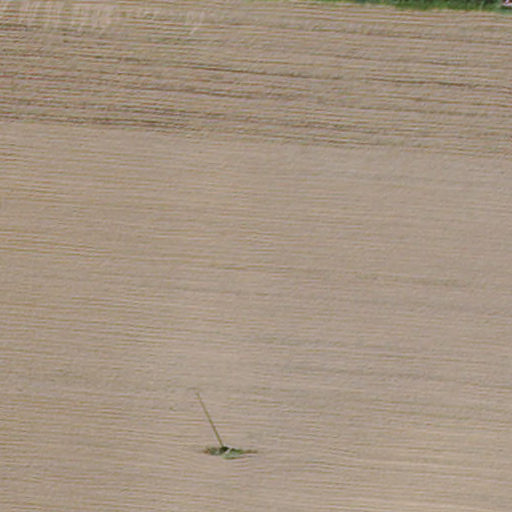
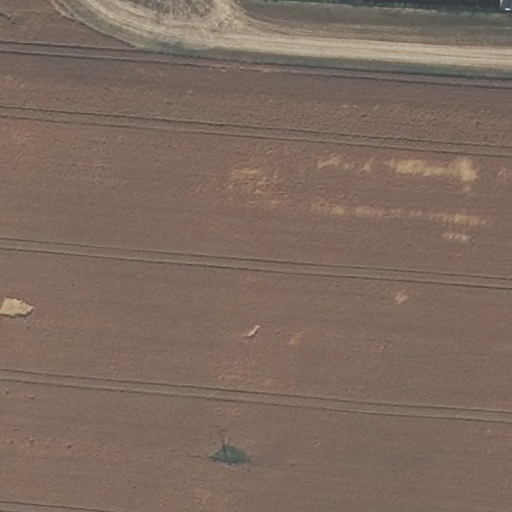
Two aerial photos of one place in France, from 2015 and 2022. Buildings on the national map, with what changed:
unchanged [(512,0),(512,1),(500,0),(512,0)]

